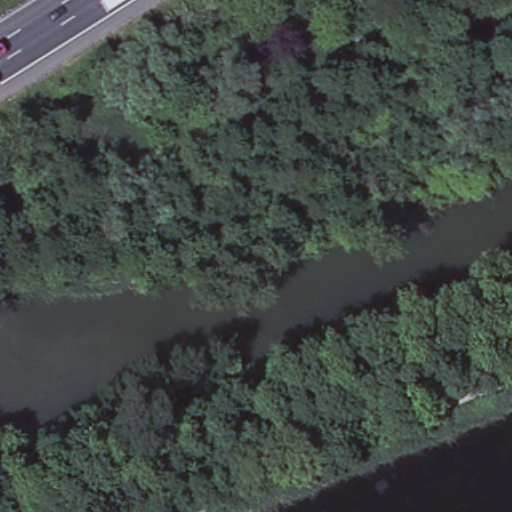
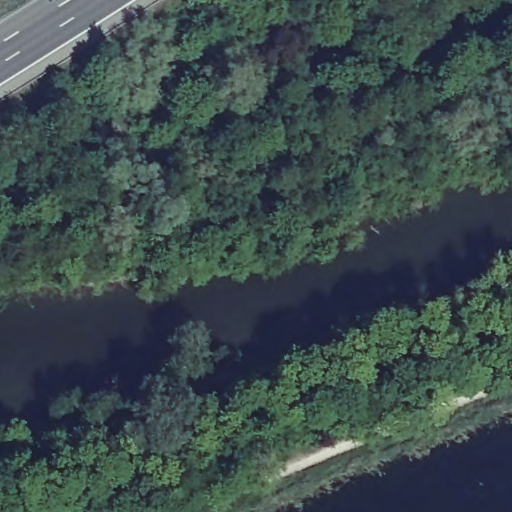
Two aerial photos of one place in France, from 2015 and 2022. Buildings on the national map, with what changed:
unchanged [(512,3),(512,25),(511,25),(472,30),(468,9),(512,3)]

